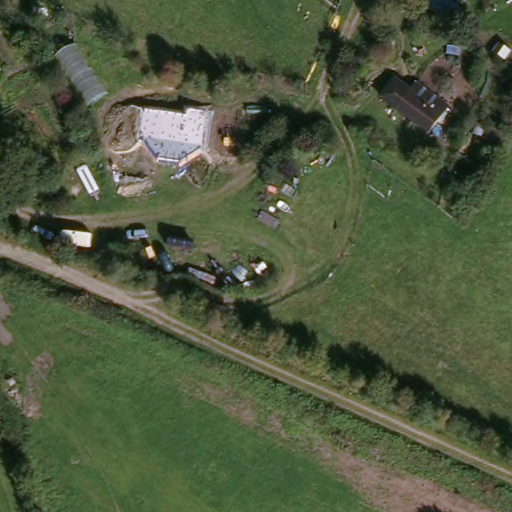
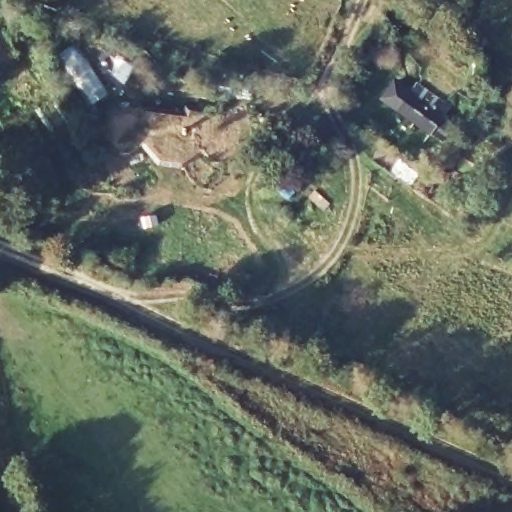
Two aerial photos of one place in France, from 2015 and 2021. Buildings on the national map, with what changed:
unchanged [(462,12),(445,0),(470,0),(462,12)]
unchanged [(442,118),(429,134),(394,109),(407,93),(442,118)]

